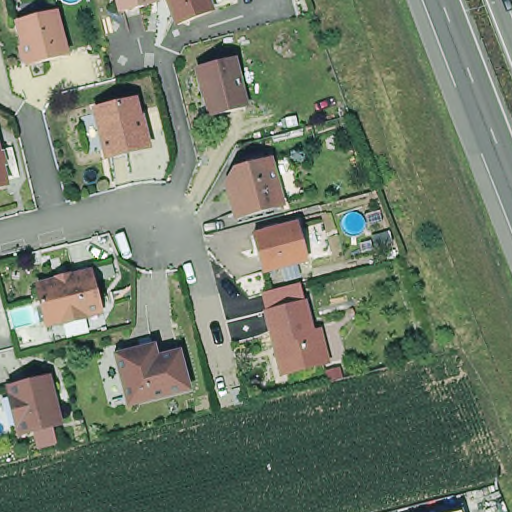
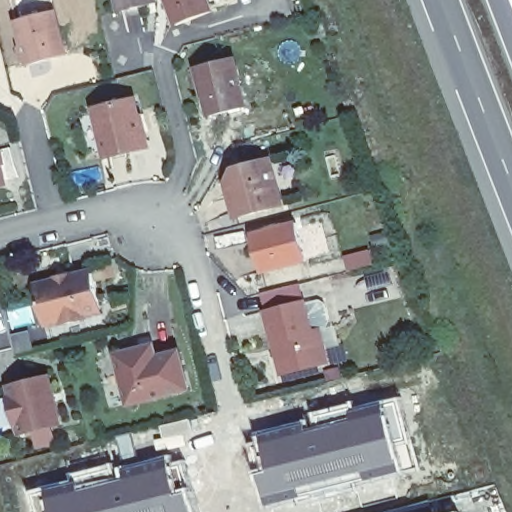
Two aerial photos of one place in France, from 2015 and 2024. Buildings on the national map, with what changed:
unchanged [(24,65),(13,21),(18,20),(14,5),(33,0),(43,0),(47,12),(52,11),(63,54),(24,65)]
unchanged [(116,11),(113,0),(152,0),(153,2),(145,4),(116,11)]
unchanged [(183,21),(170,15),(164,0),(204,0),(208,11),(183,21)]
unchanged [(194,67),(230,58),(243,106),(206,116),(194,67)]
unchanged [(86,108),(126,99),(138,147),(98,157),(86,108)]
unchanged [(273,210),(228,222),(220,193),(232,190),(227,172),(260,162),(273,210)]
unchanged [(0,188),(0,164),(4,187),(0,188)]
unchanged [(298,222),(308,259),(264,271),(254,234),(298,222)]
unchanged [(53,282),(52,277),(66,273),(67,278),(89,273),(98,308),(78,312),(80,318),(60,323),(59,317),(41,322),(32,287),(53,282)]
unchanged [(265,343),(257,311),(296,301),(304,331),(311,329),(319,362),(278,372),(272,373),(265,343)]
unchanged [(185,388),(125,403),(113,355),(136,348),(149,345),(152,357),(175,351),(185,388)]
unchanged [(57,418),(17,428),(15,418),(12,420),(5,391),(8,390),(5,381),(45,371),(57,418)]
new [(309,412),(358,400),(359,406),(384,400),(400,397),(410,441),(407,442),(401,445),(406,471),(335,487),(303,490),(305,497),(268,507),(258,467),(262,466),(254,433),(310,418),(309,412)]
new [(191,417),(195,432),(186,434),(188,446),(166,450),(159,425),(191,417)]
new [(132,432),(139,461),(136,462),(135,458),(123,461),(117,437),(132,432)]
new [(42,488),(76,479),(74,472),(117,461),(119,466),(171,453),(177,469),(179,468),(186,490),(190,489),(196,512),(45,512),(42,502),(46,501),(42,488)]
unchanged [(462,511),(462,512),(456,512),(462,511)]

